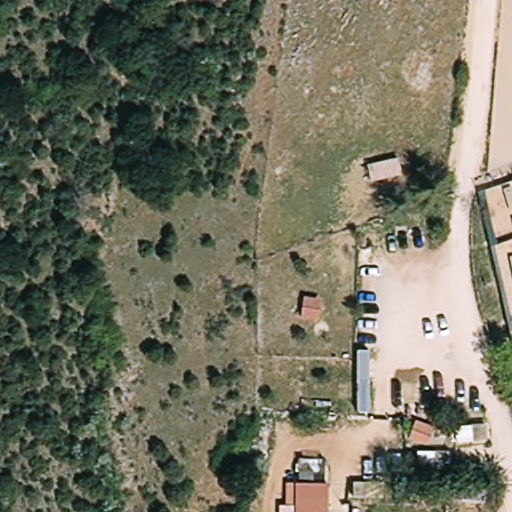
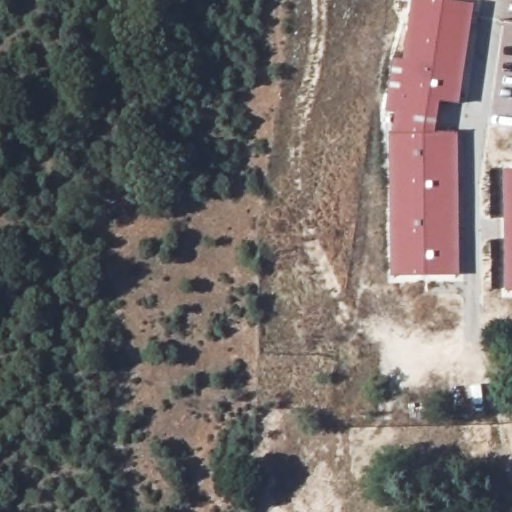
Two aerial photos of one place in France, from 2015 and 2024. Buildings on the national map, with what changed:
new [(394,133),(396,113),(386,111),(394,58),(404,59),(412,0),(453,0),(476,3),(461,105),(441,101),(437,133),(459,131),(461,276),(392,277),(390,133),(394,133)]
new [(506,292),(504,169),(512,169),(512,291),(506,292)]
unchanged [(290,487),(296,487),(295,460),(326,460),(325,489),(325,512),(289,512),(290,487)]

